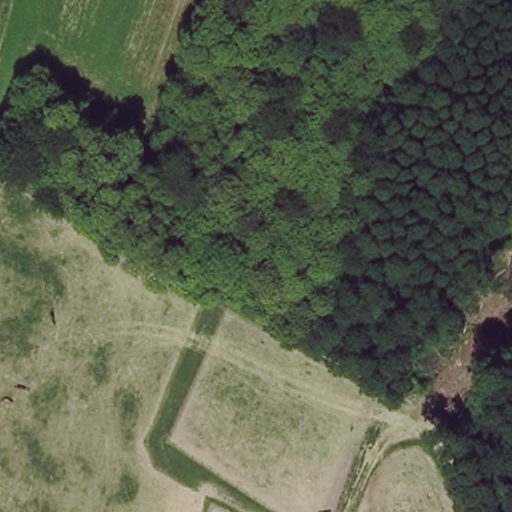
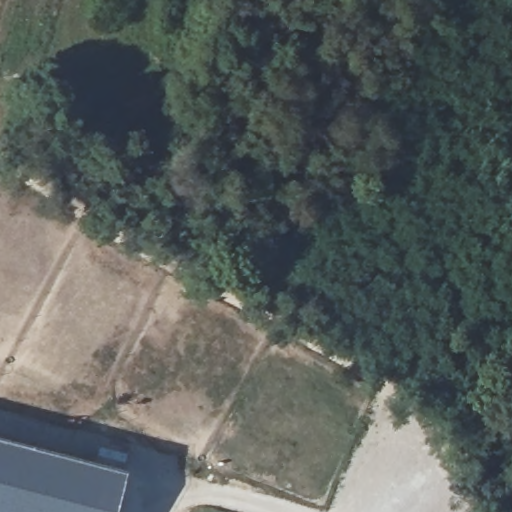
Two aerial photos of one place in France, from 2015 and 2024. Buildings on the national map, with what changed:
new [(127,465),(114,512),(0,512),(0,432),(127,465)]

